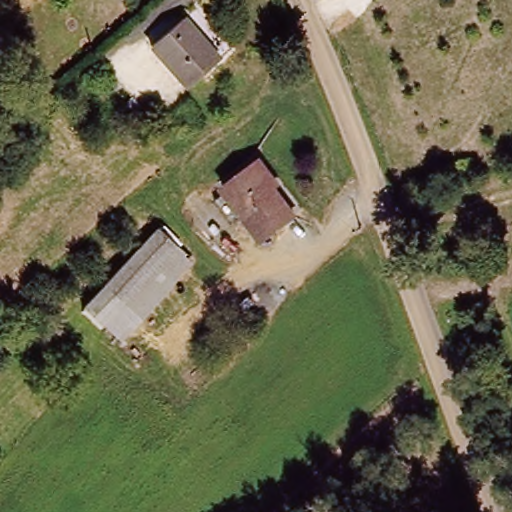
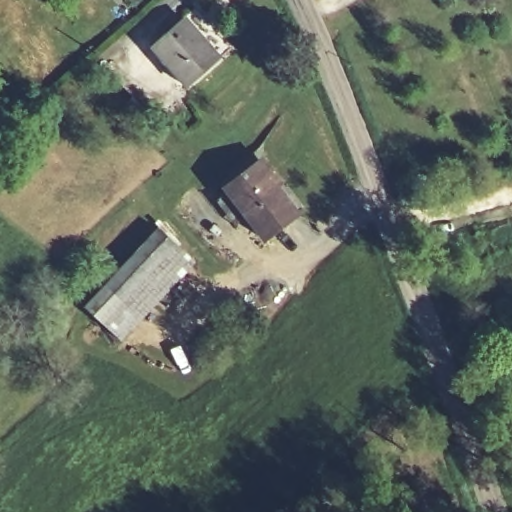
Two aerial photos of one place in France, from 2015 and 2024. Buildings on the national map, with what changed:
unchanged [(186,84),(153,50),(180,25),(213,59),(186,84)]
unchanged [(215,200),(226,192),(223,188),(255,167),(265,161),(283,184),(274,191),(293,216),(259,239),(243,217),(232,224),(215,200)]
unchanged [(176,244),(127,296),(109,280),(158,227),(176,244)]
unchanged [(109,280),(127,296),(176,244),(196,262),(124,334),(121,337),(84,303),(90,298),(109,280)]

